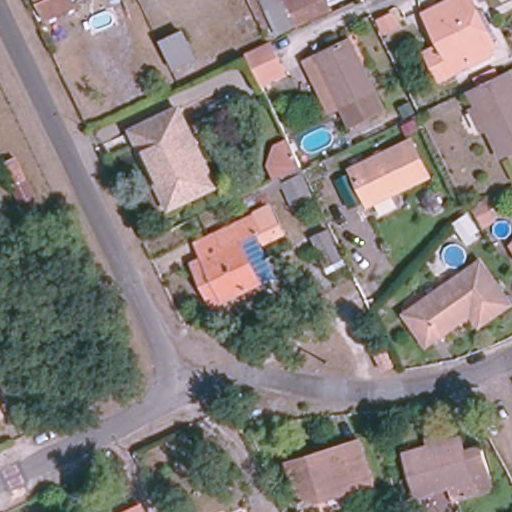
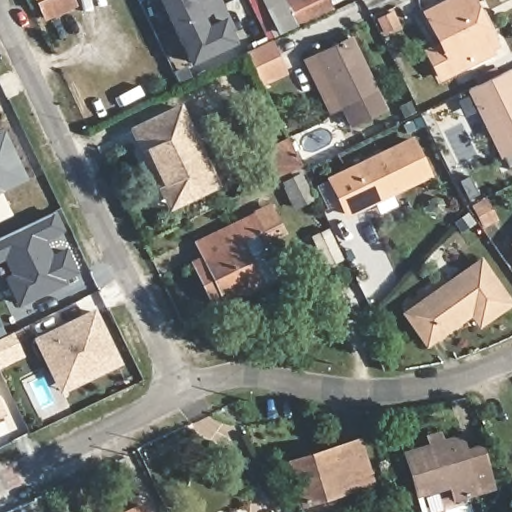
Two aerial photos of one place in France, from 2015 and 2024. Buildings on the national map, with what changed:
unchanged [(73,0),(76,6),(50,18),(41,0),(73,0)]
new [(157,0),(221,0),(236,31),(232,34),(237,43),(189,65),(157,0)]
unchanged [(280,0),(282,2),(286,0),(339,0),(327,6),(277,30),(262,0),(280,0)]
unchanged [(442,76),(428,49),(442,41),(426,12),(448,0),(472,0),(476,7),(482,6),(497,35),(493,40),(487,44),(491,50),(471,61),(442,76)]
unchanged [(397,5),(406,24),(388,32),(380,15),(397,5)]
demolished [(179,34),(191,57),(174,66),(162,41),(179,34)]
unchanged [(384,107),(351,124),(341,105),(331,110),(306,59),(350,37),(384,107)]
unchanged [(269,41),(285,75),(261,86),(247,54),(269,41)]
unchanged [(470,110),(478,107),(471,90),(511,70),(512,74),(512,151),(502,156),(488,127),(480,131),(470,110)]
unchanged [(149,175),(129,129),(182,104),(218,183),(183,199),(164,208),(149,175)]
new [(27,180),(0,192),(0,131),(3,130),(27,180)]
unchanged [(411,140),(429,175),(371,204),(353,169),(411,140)]
unchanged [(273,184),(267,170),(273,151),(287,145),(300,171),(273,184)]
demolished [(0,163),(9,159),(19,179),(6,184),(0,171),(0,163)]
new [(345,218),(324,178),(351,165),(353,169),(371,204),(345,218)]
demolished [(17,202),(10,186),(20,181),(27,197),(19,201),(17,202)]
unchanged [(298,181),(310,204),(292,213),(281,190),(298,181)]
unchanged [(488,191),(500,211),(488,218),(477,198),(488,191)]
unchanged [(191,262),(201,257),(193,242),(268,205),(281,231),(262,240),(257,227),(249,231),(271,277),(222,301),(212,305),(191,262)]
new [(0,238),(56,212),(64,230),(46,240),(53,256),(69,249),(77,267),(65,282),(17,305),(4,277),(7,276),(2,262),(0,263),(0,238)]
unchanged [(317,244),(310,230),(327,221),(333,235),(317,244)]
unchanged [(508,244),(512,239),(512,249),(508,244)]
unchanged [(342,250),(347,261),(335,267),(330,257),(342,250)]
unchanged [(476,260),(506,301),(477,323),(468,312),(426,342),(403,312),(476,260)]
new [(95,308),(121,364),(59,394),(31,337),(95,308)]
new [(0,337),(12,332),(24,357),(0,369),(0,337)]
unchanged [(0,414),(0,411),(1,413),(0,414)]
unchanged [(462,460),(477,455),(490,495),(472,501),(467,486),(416,502),(402,462),(428,453),(425,445),(438,440),(442,449),(457,444),(462,460)]
unchanged [(371,481),(302,502),(291,468),(289,461),(316,454),(359,441),(371,481)]
unchanged [(142,505),(145,512),(128,512),(142,505)]

